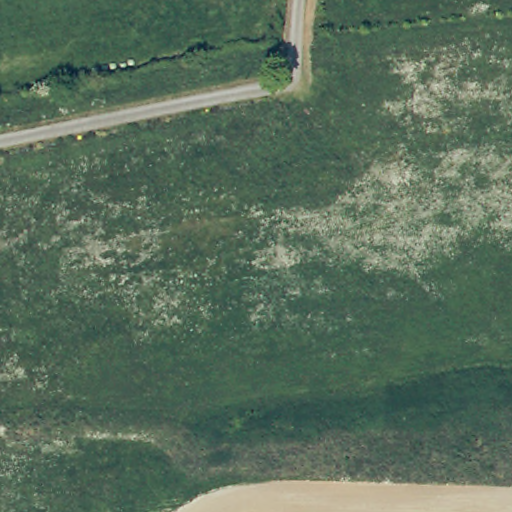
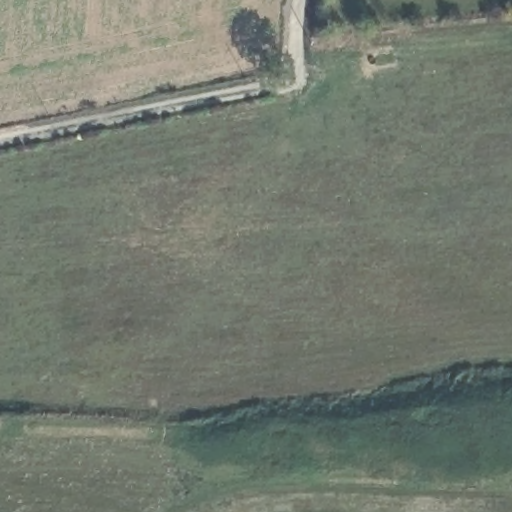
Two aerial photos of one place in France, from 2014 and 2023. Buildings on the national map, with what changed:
[]

